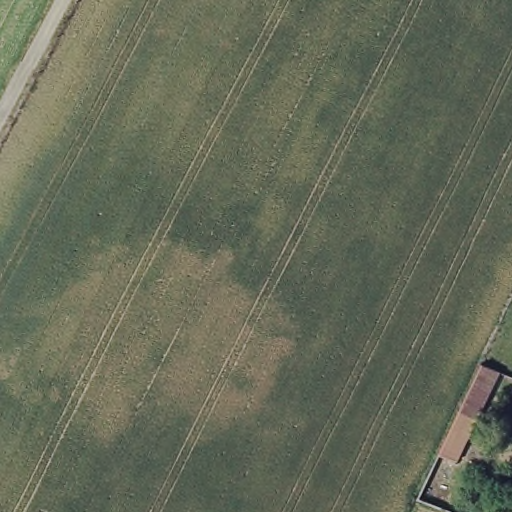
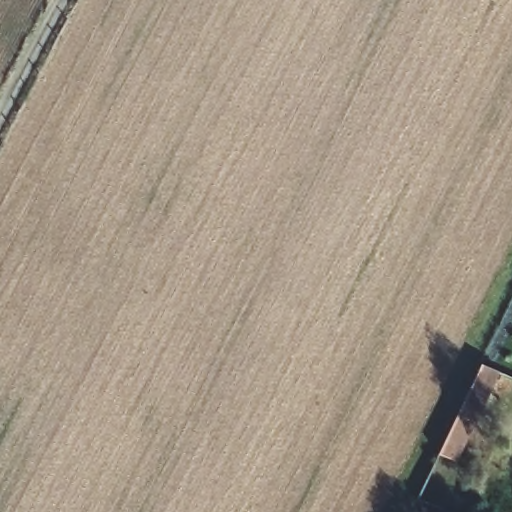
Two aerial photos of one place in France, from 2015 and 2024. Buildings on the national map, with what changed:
unchanged [(498,371),(476,419),(458,411),(481,363),(498,371)]

